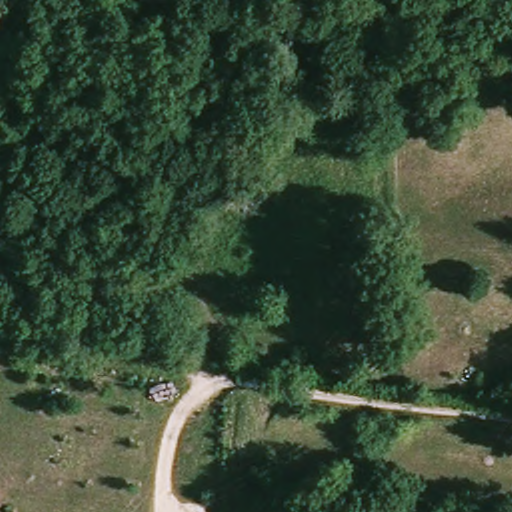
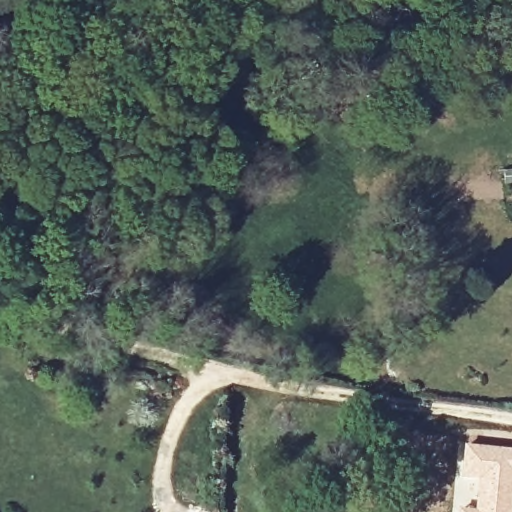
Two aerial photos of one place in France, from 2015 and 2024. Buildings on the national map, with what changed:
new [(463,445),(512,449),(512,512),(454,512),(457,477),(463,445)]

